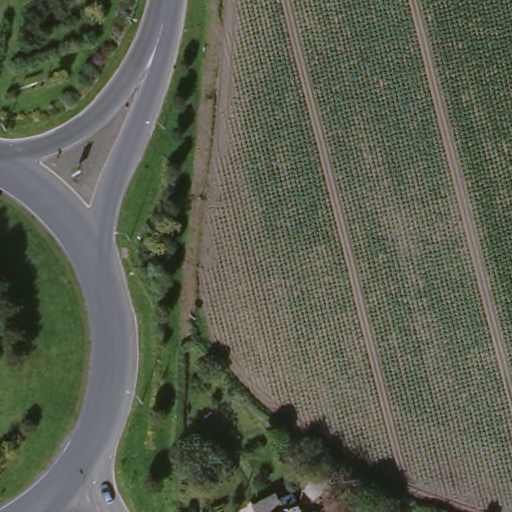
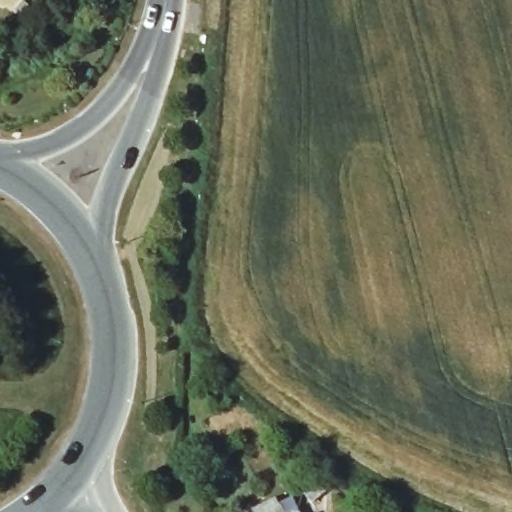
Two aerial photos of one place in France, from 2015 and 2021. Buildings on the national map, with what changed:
unchanged [(326,471),(335,481),(313,501),(303,491),(326,471)]
unchanged [(275,501),(278,506),(291,499),(296,512),(253,512),(275,501)]

